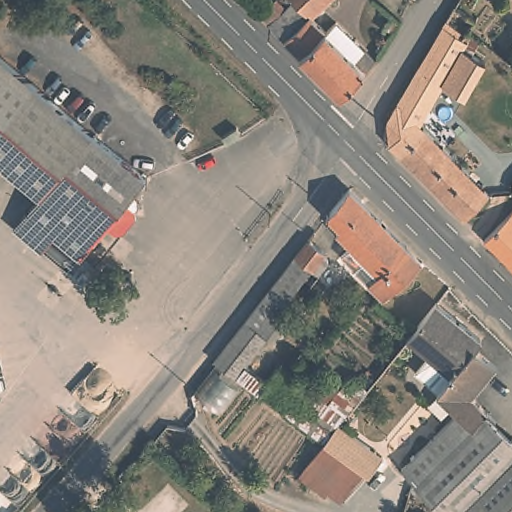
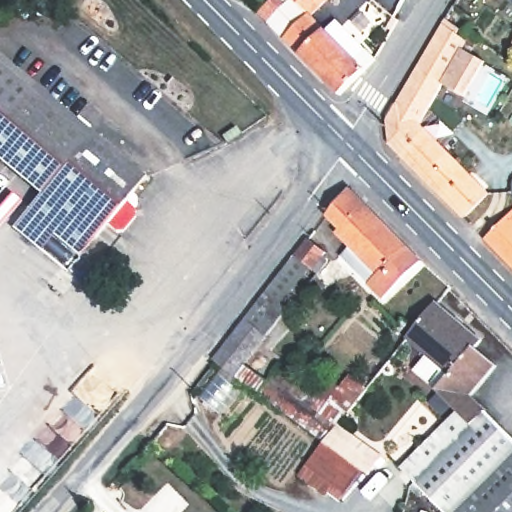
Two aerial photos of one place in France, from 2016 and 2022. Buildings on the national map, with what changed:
unchanged [(309,9),(345,42),(338,51),(342,54),(328,74),(257,3),(261,0),(319,0),(309,9)]
unchanged [(462,98),(449,86),(420,124),(466,170),(441,197),(388,143),(387,132),(388,122),(391,112),(393,108),(460,0),(466,0),(482,17),(476,28),(493,45),(485,53),(492,62),(487,69),(462,98)]
unchanged [(353,45),(357,40),(372,51),(346,92),(328,74),(342,54),(338,51),(345,42),(353,45)]
unchanged [(126,208),(135,216),(135,223),(121,237),(115,237),(106,229),(76,259),(41,227),(26,241),(11,225),(41,194),(0,155),(0,54),(4,49),(146,185),(126,208)]
unchanged [(488,192),(464,219),(441,197),(466,170),(488,192)]
unchanged [(511,187),(512,186),(512,192),(511,187)]
unchanged [(340,253),(346,247),(334,235),(338,228),(328,217),(353,187),(423,257),(380,300),(340,253)]
unchanged [(488,244),(512,215),(512,268),(488,244)]
unchanged [(303,253),(318,234),(334,248),(318,264),(316,265),(280,319),(261,303),(303,252),(303,253)]
unchanged [(480,349),(454,380),(410,339),(445,300),(488,339),(480,349)]
unchanged [(211,363),(259,305),(261,303),(280,319),(245,362),(233,377),(232,378),(211,363)]
unchanged [(480,349),(500,368),(473,399),(485,411),(474,424),(458,411),(441,395),(454,380),(480,349)]
unchanged [(271,382),(283,363),(310,387),(327,366),(345,383),(352,372),(374,388),(343,422),(380,453),(344,507),(299,476),(324,444),(233,377),(245,362),(271,382)]
unchanged [(474,424),(485,411),(512,439),(512,512),(447,512),(416,480),(404,468),(422,448),(458,411),(474,424)]

